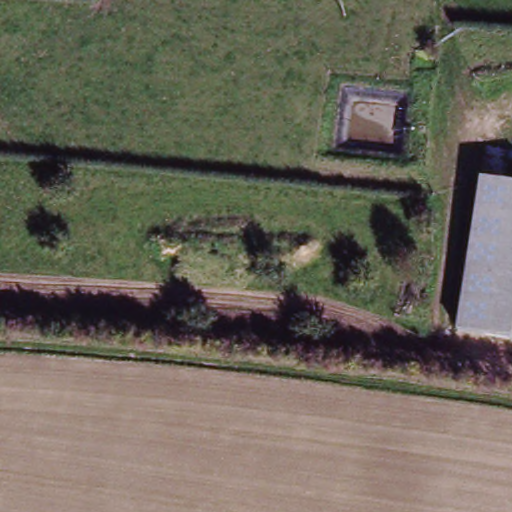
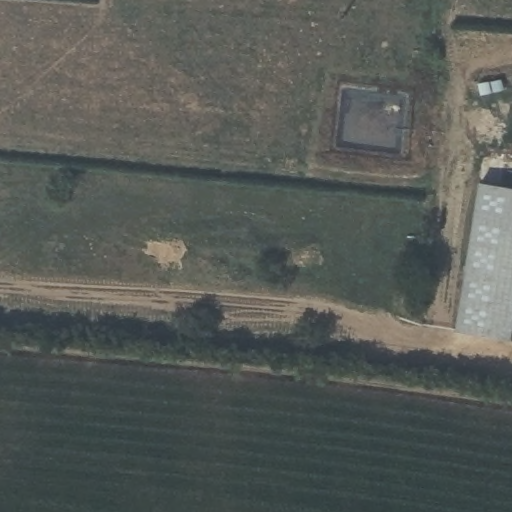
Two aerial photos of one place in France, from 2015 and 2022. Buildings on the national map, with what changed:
unchanged [(480,182),(512,186),(512,210),(477,206),(480,182)]
unchanged [(460,332),(477,206),(512,210),(512,339),(460,332)]

